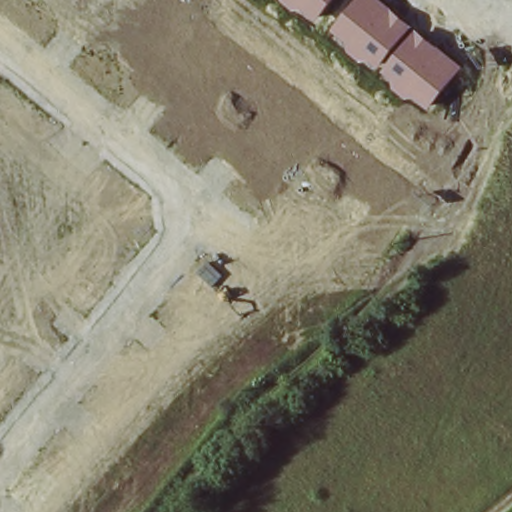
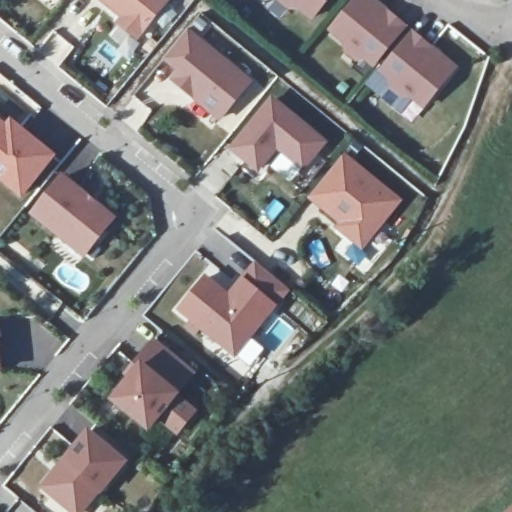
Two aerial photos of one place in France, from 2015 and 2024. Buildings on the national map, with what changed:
new [(138,42),(116,23),(120,18),(99,0),(171,0),(138,42)]
unchanged [(313,20),(300,10),(291,12),(278,2),(278,0),(328,0),(313,20)]
unchanged [(355,0),(376,0),(408,26),(376,68),(365,61),(358,63),(343,53),(344,43),(329,32),(355,0)]
new [(188,28),(252,82),(221,123),(170,79),(177,70),(164,60),(188,28)]
unchanged [(413,30),(459,66),(425,109),(410,98),(403,100),(390,90),(390,82),(380,72),(413,30)]
demolished [(510,40),(507,50),(495,46),(499,36),(510,40)]
new [(273,95),(329,141),(304,173),(278,150),(259,172),(229,148),(273,95)]
new [(9,117),(54,156),(21,199),(0,183),(0,120),(4,123),(9,117)]
new [(406,200),(368,245),(312,196),(349,151),(406,200)]
new [(124,214),(91,254),(36,209),(67,169),(124,214)]
new [(294,292),(239,358),(181,310),(212,273),(234,292),(259,262),(294,292)]
new [(128,376),(137,365),(154,344),(194,376),(176,398),(195,414),(179,434),(159,418),(149,430),(114,401),(132,379),(128,376)]
new [(89,434),(125,464),(101,493),(99,492),(83,512),(71,512),(43,489),(56,474),(65,463),(89,434)]
new [(508,512),(512,509),(512,512),(508,512)]

